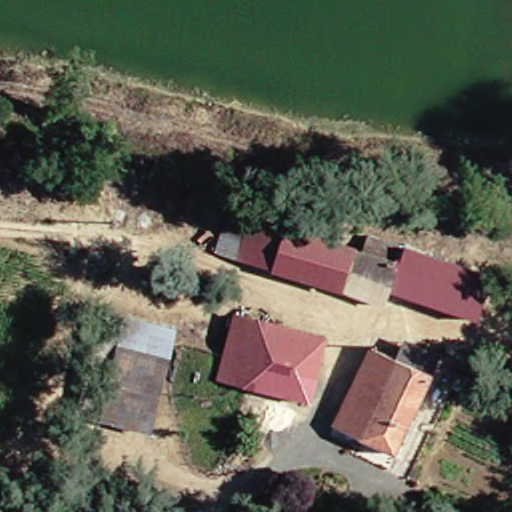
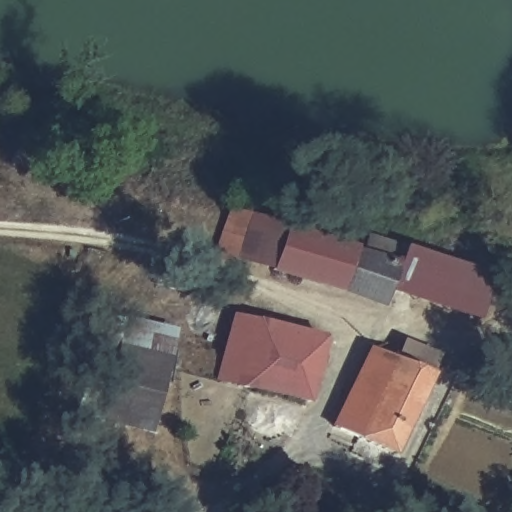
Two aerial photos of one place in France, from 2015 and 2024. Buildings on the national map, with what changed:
unchanged [(234,270),(246,230),(301,243),(289,285),(234,270)]
unchanged [(398,313),(289,285),(301,243),(368,259),(373,245),(414,256),(402,299),(398,313)]
unchanged [(486,321),(402,299),(414,256),(467,271),(499,280),(491,304),(486,321)]
unchanged [(213,385),(226,321),(251,326),(238,391),(213,385)]
unchanged [(123,353),(130,322),(171,330),(163,360),(145,437),(103,428),(123,353)]
unchanged [(314,338),(302,405),(238,391),(251,326),(314,338)]
unchanged [(328,430),(364,348),(387,359),(394,346),(427,357),(420,373),(385,452),(328,430)]

